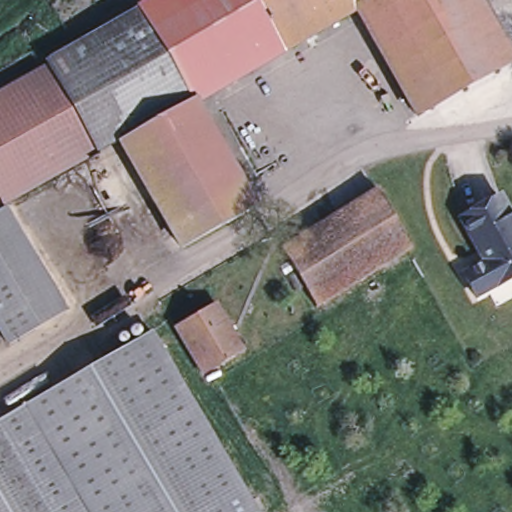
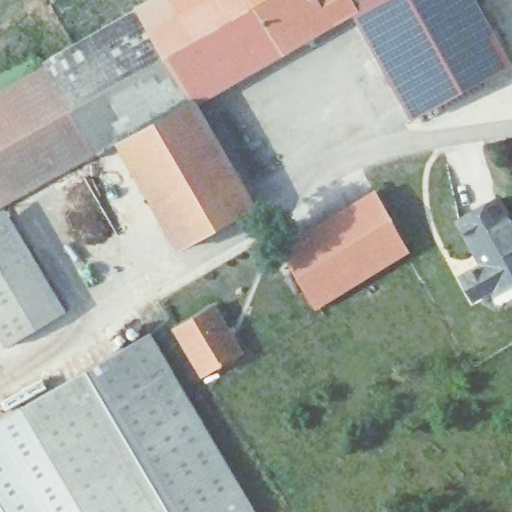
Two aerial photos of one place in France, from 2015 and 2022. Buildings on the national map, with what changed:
unchanged [(151,0),(251,0),(280,52),(196,99),(193,100),(138,7),(151,0)]
unchanged [(280,52),(251,0),(477,0),(512,62),(512,63),(417,117),(356,9),(280,52)]
unchanged [(45,61),(138,7),(193,100),(118,139),(98,151),(46,64),(45,61)]
unchanged [(0,90),(40,67),(46,64),(98,151),(0,205),(0,90)]
unchanged [(193,100),(196,99),(258,207),(185,249),(118,139),(193,100)]
unchanged [(411,255),(317,311),(280,250),(375,195),(411,255)]
unchanged [(459,221),(497,198),(512,223),(512,278),(475,299),(462,276),(484,264),(478,254),(459,221)]
unchanged [(61,310),(6,343),(0,332),(0,212),(5,209),(61,310)]
unchanged [(243,348),(202,373),(173,325),(214,301),(243,348)]
unchanged [(230,462),(144,512),(46,512),(0,430),(0,426),(153,336),(230,462)]
unchanged [(0,512),(0,430),(46,512),(0,512)]
unchanged [(195,512),(144,512),(230,462),(243,485),(195,512)]
unchanged [(195,512),(243,485),(260,512),(195,512)]

